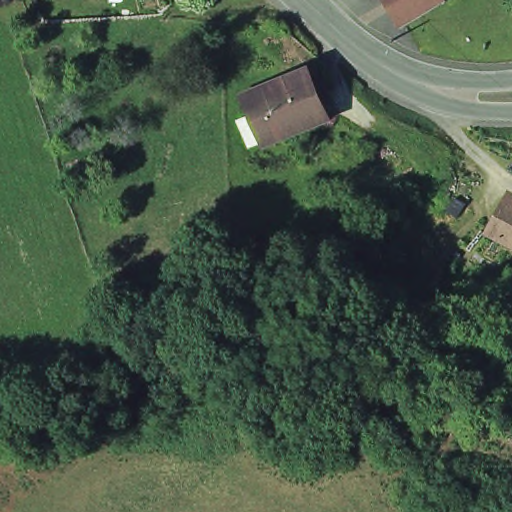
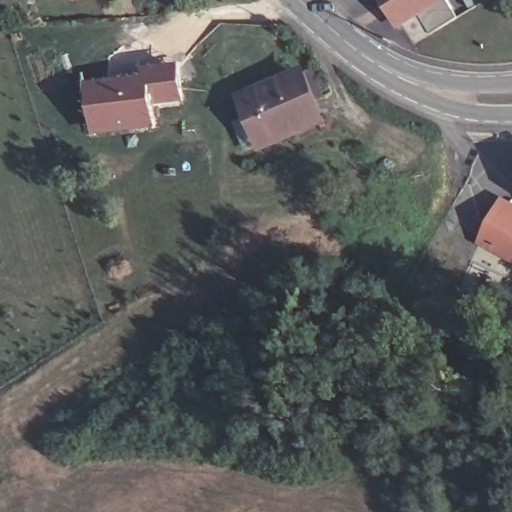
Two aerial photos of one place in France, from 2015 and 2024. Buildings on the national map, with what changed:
unchanged [(433,0),(437,8),(398,31),(393,22),(382,0),(433,0)]
new [(182,102),(152,103),(153,128),(90,130),(90,87),(142,84),(141,71),(179,68),(182,102)]
unchanged [(262,148),(259,140),(249,144),(242,125),(250,122),(242,102),(300,77),(312,72),(322,94),(309,99),(320,124),(262,148)]
unchanged [(512,215),(512,257),(482,239),(500,208),(512,215)]

